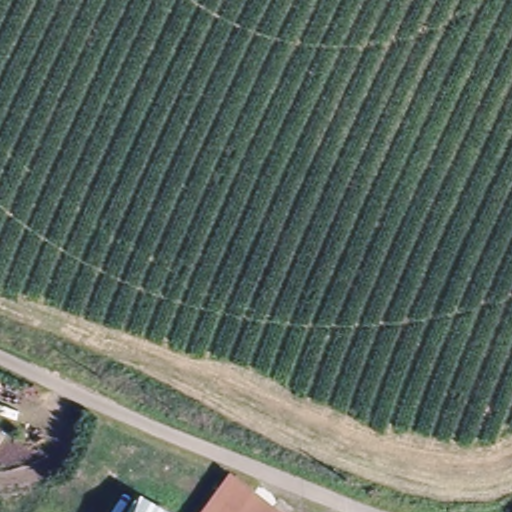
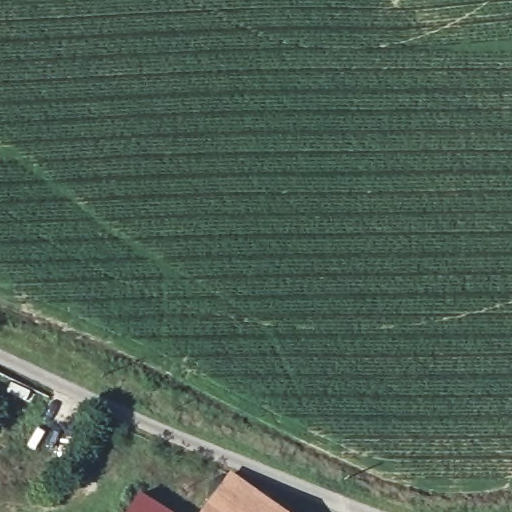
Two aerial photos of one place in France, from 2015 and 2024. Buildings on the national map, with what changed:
unchanged [(275,512),(195,512),(224,473),(275,512)]
unchanged [(134,491),(167,512),(121,512),(134,491)]

